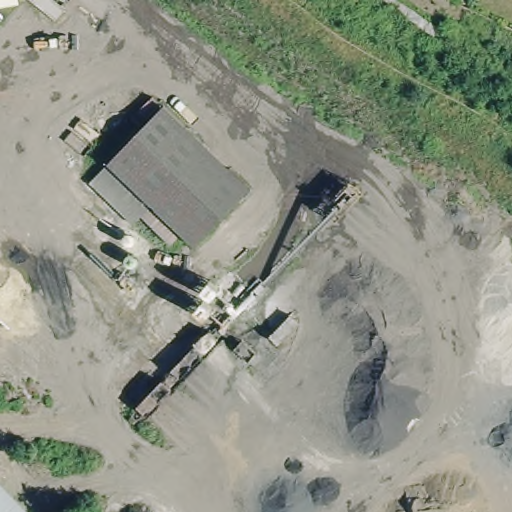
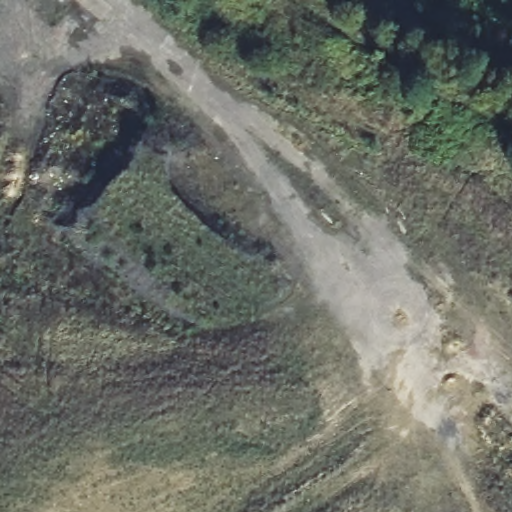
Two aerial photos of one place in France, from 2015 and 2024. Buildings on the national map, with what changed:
demolished [(255,187),(200,244),(192,236),(180,254),(95,178),(165,106),(255,187)]
demolished [(0,483),(28,512),(0,512),(0,483)]

